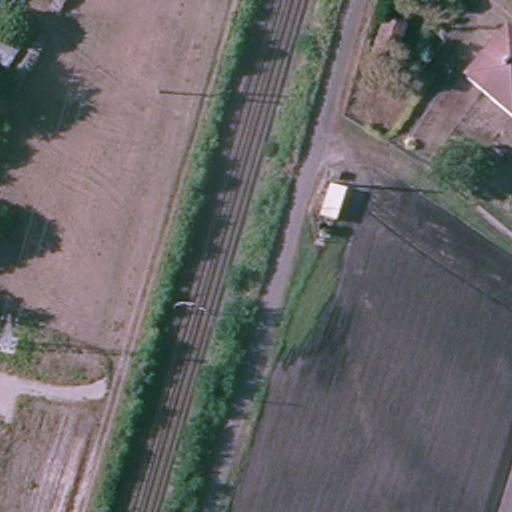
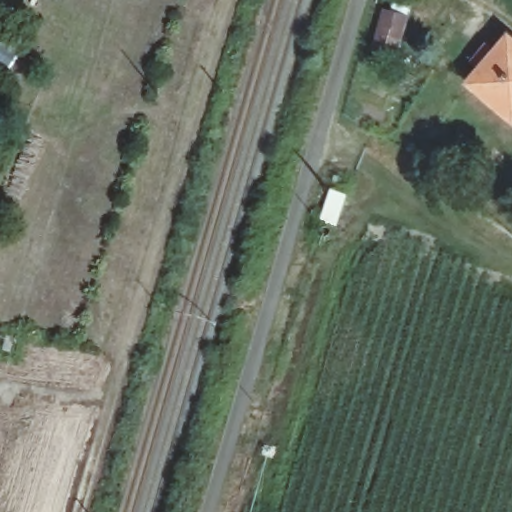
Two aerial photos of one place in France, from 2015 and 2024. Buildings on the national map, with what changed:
unchanged [(370,18),(392,23),(382,62),(358,57),(370,18)]
unchanged [(507,125),(458,85),(500,29),(512,39),(512,119),(507,125)]

